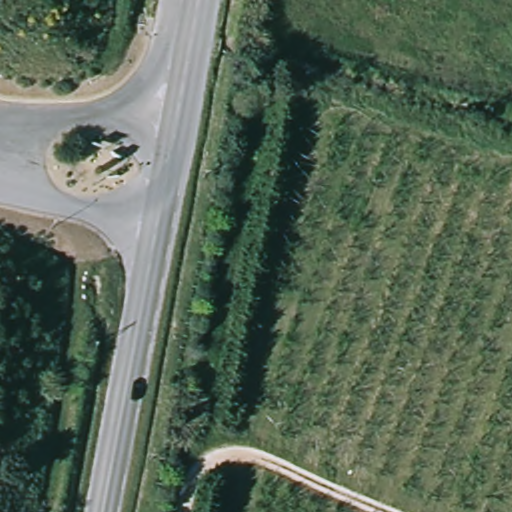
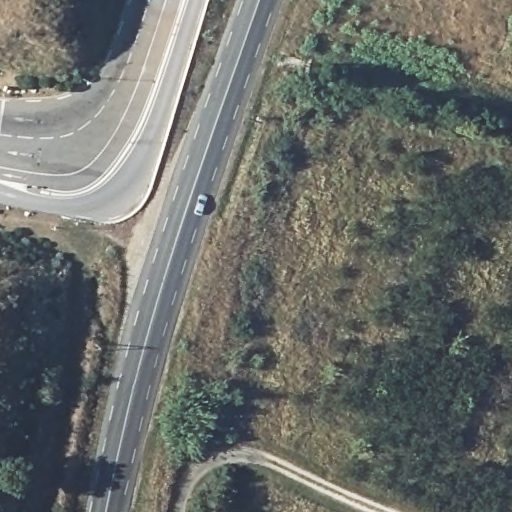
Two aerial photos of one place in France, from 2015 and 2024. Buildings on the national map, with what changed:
[]

